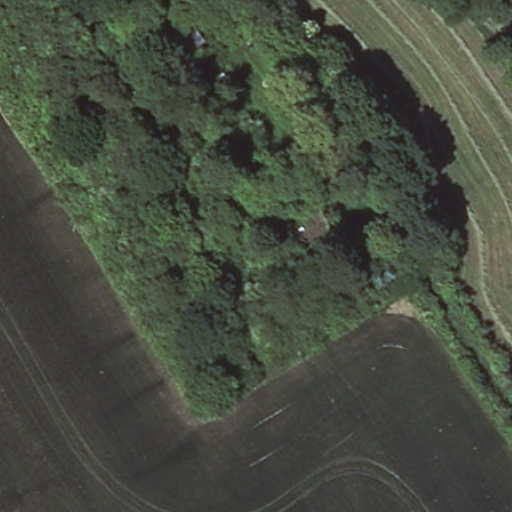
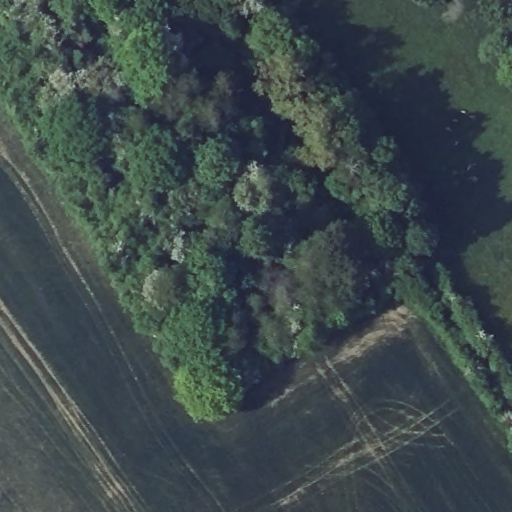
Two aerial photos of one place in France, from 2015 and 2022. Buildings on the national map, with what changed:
unchanged [(245,51),(272,34),(300,79),(275,92),(245,51)]
unchanged [(193,173),(170,183),(156,148),(175,137),(193,173)]
unchanged [(314,250),(304,235),(292,244),(267,208),(285,196),(280,190),(285,185),(290,192),(293,190),(301,202),(310,196),(322,214),(336,235),(314,250)]

